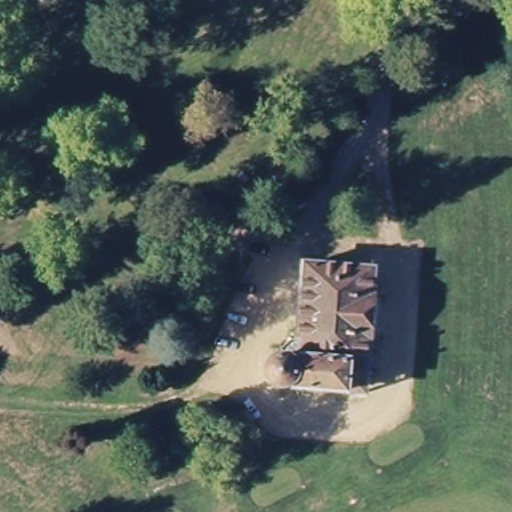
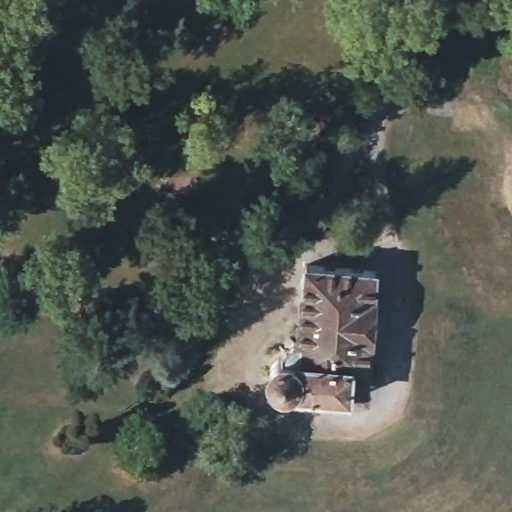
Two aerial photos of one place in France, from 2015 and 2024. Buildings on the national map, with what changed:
unchanged [(214,201),(222,211),(222,225),(209,235),(209,252),(195,253),(197,234),(187,227),(187,210),(199,202),(214,201)]
unchanged [(377,270),(368,393),(280,390),(279,385),(272,381),(272,370),(279,360),(284,358),(284,350),(303,339),(309,265),(377,270)]

